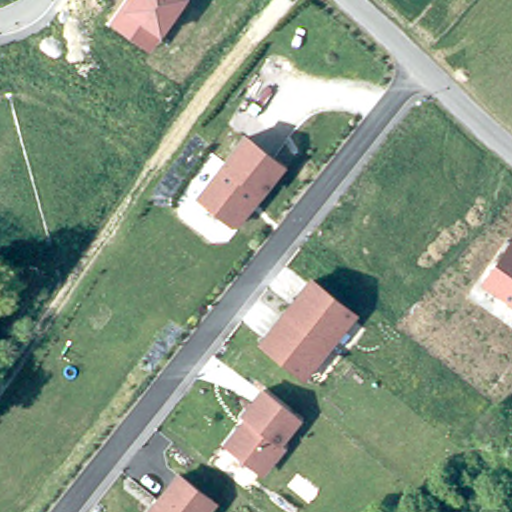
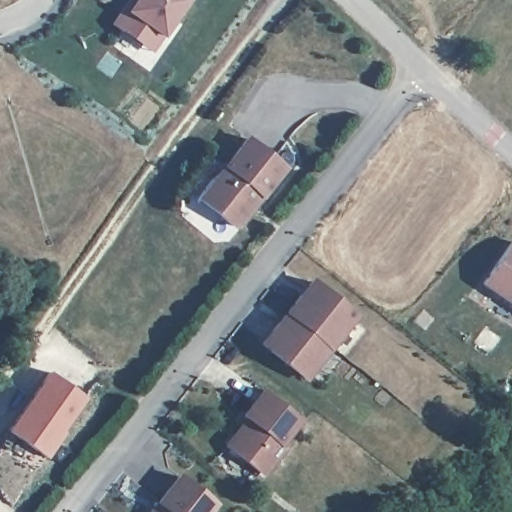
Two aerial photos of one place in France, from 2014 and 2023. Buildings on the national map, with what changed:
unchanged [(109,27),(128,0),(187,0),(151,55),(109,27)]
unchanged [(245,134),(286,165),(236,227),(196,195),(245,134)]
unchanged [(512,242),(512,304),(481,282),(512,242)]
unchanged [(314,279),(356,317),(307,377),(261,345),(314,279)]
new [(47,371),(85,397),(63,430),(65,432),(46,457),(6,430),(47,371)]
unchanged [(296,416),(276,441),(279,445),(268,459),(264,456),(253,469),(220,442),(233,427),(238,427),(245,417),(238,412),(259,387),(296,416)]
unchanged [(142,511),(149,510),(156,501),(153,498),(173,472),(208,500),(199,512),(141,512),(142,511)]

